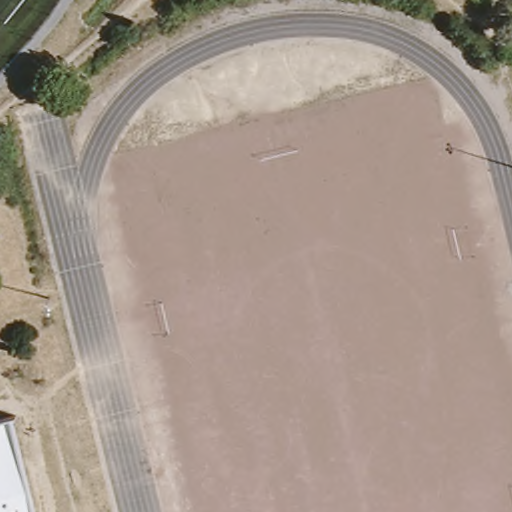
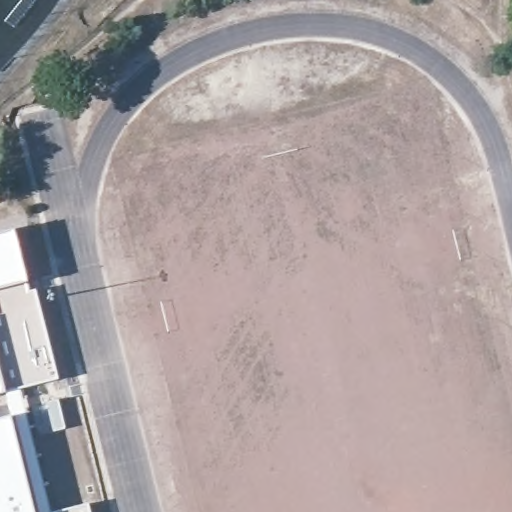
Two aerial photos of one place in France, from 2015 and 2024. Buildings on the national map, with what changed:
new [(29,282),(30,292),(37,290),(60,378),(22,389),(53,512),(34,512),(14,422),(13,415),(7,393),(0,395),(0,233),(15,230),(29,282)]
unchanged [(34,512),(0,512),(0,425),(14,422),(34,512)]
new [(91,512),(53,512),(89,503),(91,512)]

